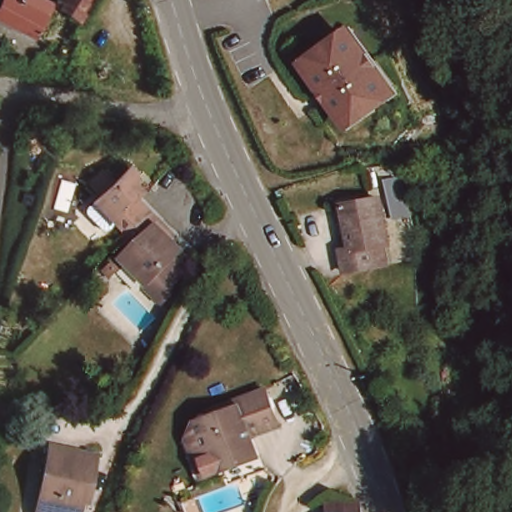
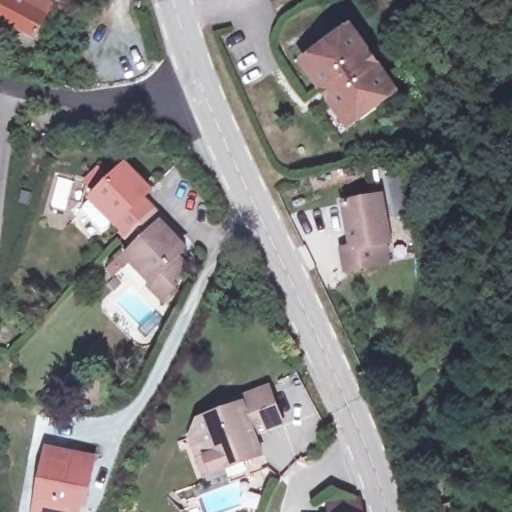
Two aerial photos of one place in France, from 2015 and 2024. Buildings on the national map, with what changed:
unchanged [(0,18),(0,0),(48,0),(30,34),(0,18)]
unchanged [(75,14),(57,2),(58,0),(83,0),(75,14)]
unchanged [(317,75),(323,71),(315,60),(353,35),(388,87),(393,95),(392,96),(355,120),(348,109),(342,112),(333,99),(326,89),(317,75)]
unchanged [(388,162),(405,200),(392,206),(375,169),(388,162)]
unchanged [(77,190),(89,176),(95,182),(100,187),(115,171),(140,195),(133,202),(157,224),(170,235),(167,239),(178,250),(167,262),(178,273),(167,285),(175,292),(162,306),(143,288),(150,281),(138,271),(135,274),(122,262),(131,251),(104,227),(97,235),(92,235),(75,220),(75,215),(85,202),(87,200),(82,196),(77,190)]
unchanged [(382,252),(352,265),(344,246),(355,242),(338,202),(377,189),(391,227),(385,229),(393,249),(382,252)]
unchanged [(185,430),(195,413),(215,408),(213,402),(269,387),(277,418),(279,425),(250,432),(255,453),(217,463),(196,470),(185,430)]
unchanged [(90,495),(84,495),(80,512),(35,512),(45,455),(95,464),(90,495)]

